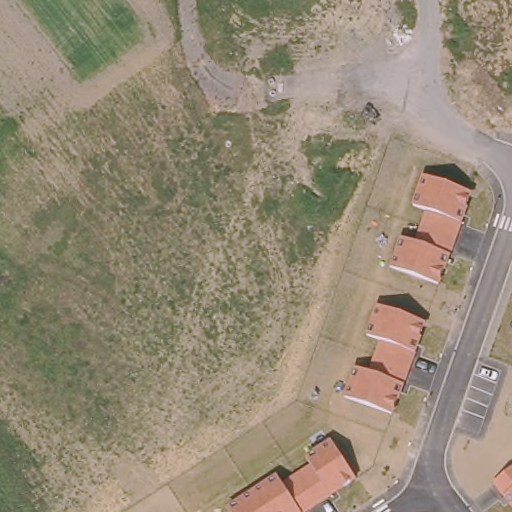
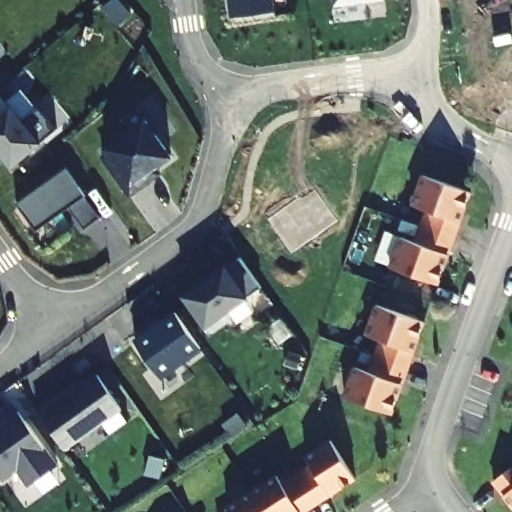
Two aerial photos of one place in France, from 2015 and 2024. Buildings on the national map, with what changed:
new [(232,14),(231,0),(274,0),(275,8),(232,14)]
unchanged [(18,116),(0,128),(0,93),(18,116)]
unchanged [(18,116),(40,142),(11,165),(0,151),(0,128),(18,116)]
new [(144,172),(147,177),(128,191),(103,155),(109,151),(106,146),(146,119),(171,154),(144,172)]
new [(99,212),(84,223),(70,205),(36,228),(17,202),(67,168),(99,212)]
unchanged [(440,283),(390,267),(400,237),(413,240),(425,208),(412,205),(423,175),(472,191),(462,222),(450,255),(440,283)]
new [(202,279),(204,281),(240,255),(262,285),(206,325),(184,292),(202,279)]
unchanged [(394,413),(344,397),(354,367),(368,370),(379,337),(366,335),(375,305),(424,322),(415,351),(404,385),(394,413)]
new [(154,327),(155,329),(163,323),(161,320),(175,310),(200,346),(160,375),(135,340),(154,327)]
new [(74,382),(77,386),(97,372),(122,406),(65,448),(37,409),(52,398),(74,382)]
new [(5,421),(4,419),(17,409),(57,464),(30,484),(18,467),(2,478),(0,475),(0,425),(5,421)]
unchanged [(276,474),(280,480),(311,462),(305,455),(331,439),(357,479),(330,495),(305,512),(231,512),(227,506),(276,474)]
unchanged [(492,482),(512,468),(512,508),(504,497),(492,482)]

